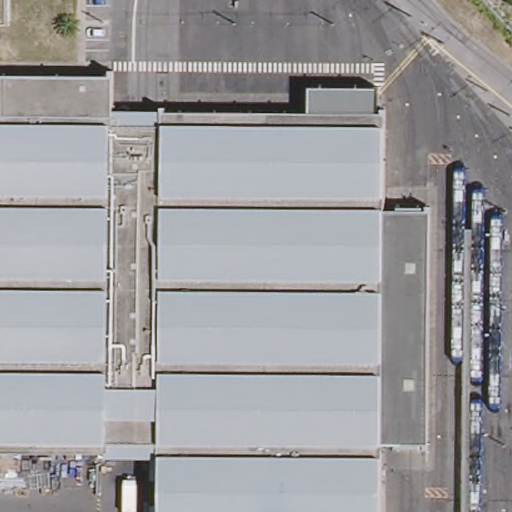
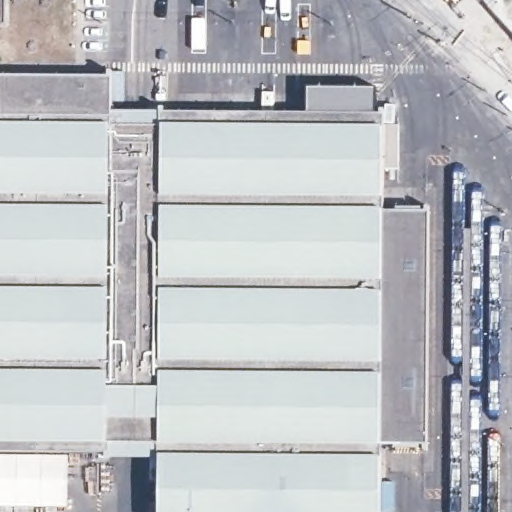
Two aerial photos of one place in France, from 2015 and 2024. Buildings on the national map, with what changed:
unchanged [(0,0),(5,0),(5,27),(0,26),(0,0)]
unchanged [(383,387),(383,450),(382,512),(157,512),(158,449),(110,448),(110,458),(0,460),(0,82),(113,84),(113,116),(385,117),(385,217),(383,387)]
unchanged [(428,450),(383,450),(383,387),(385,217),(430,218),(429,330),(428,450)]
unchanged [(465,229),(472,229),(469,512),(463,512),(465,229)]
new [(68,505),(0,505),(0,460),(68,459),(68,505)]

